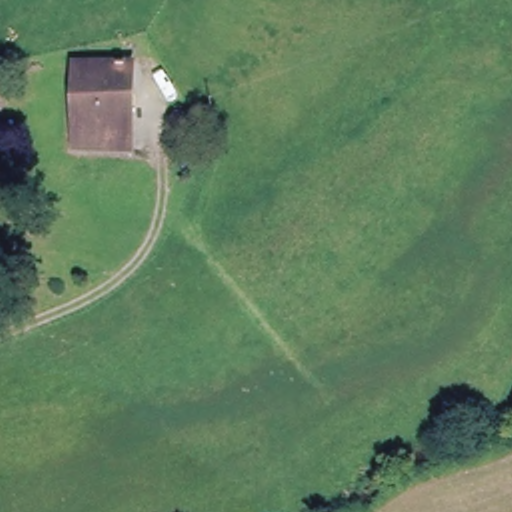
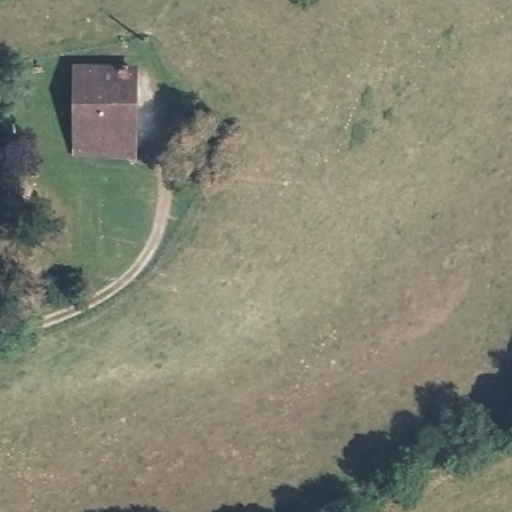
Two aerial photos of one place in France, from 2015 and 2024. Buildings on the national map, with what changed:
unchanged [(114,160),(80,159),(83,94),(82,76),(111,73),(141,73),(140,138),(139,160),(114,160)]

